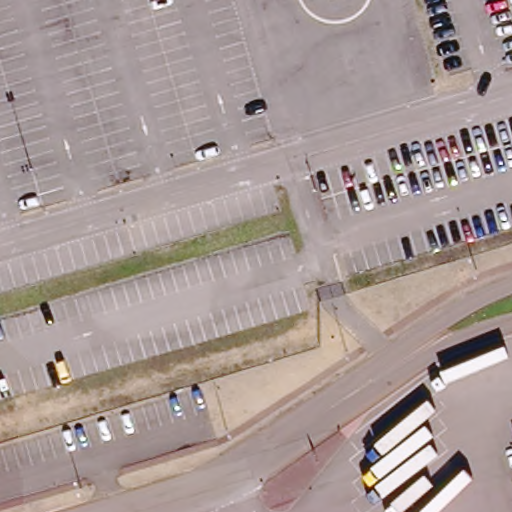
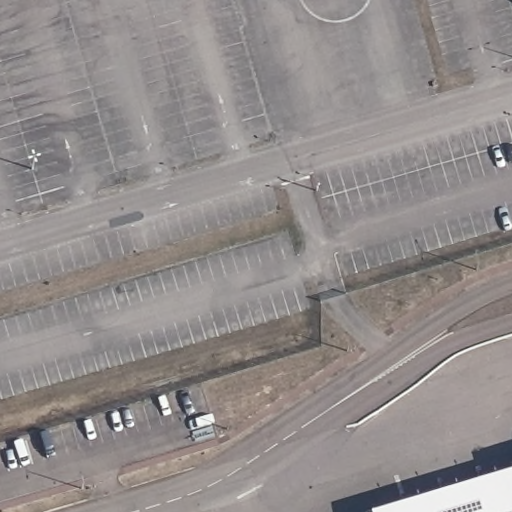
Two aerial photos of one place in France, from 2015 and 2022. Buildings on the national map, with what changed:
new [(512,512),(383,512),(512,476),(512,512)]

